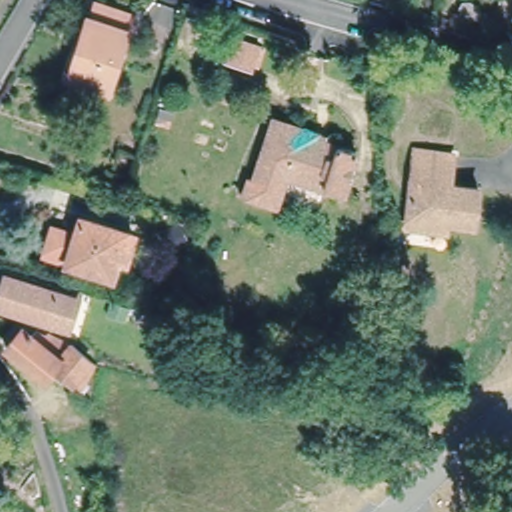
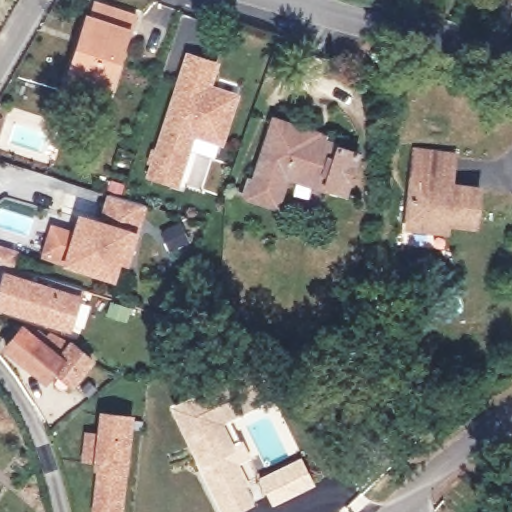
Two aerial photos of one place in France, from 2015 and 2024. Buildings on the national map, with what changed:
unchanged [(106,89),(69,77),(88,17),(91,19),(96,2),(131,14),(126,30),(125,29),(106,89)]
new [(241,93),(224,144),(197,137),(178,187),(146,176),(150,163),(146,163),(153,147),(156,148),(186,49),(221,61),(214,84),(241,93)]
unchanged [(291,174),(281,170),(271,201),(243,192),(271,114),(299,124),(291,174)]
unchanged [(319,131),(317,136),(353,149),(339,190),(291,174),(299,124),(319,131)]
unchanged [(431,225),(406,221),(416,144),(453,149),(451,168),(449,179),(477,182),(473,221),(447,218),(446,227),(431,225)]
unchanged [(49,260),(59,231),(81,238),(86,222),(141,240),(133,266),(123,263),(117,282),(49,260)]
new [(0,265),(0,249),(11,252),(6,266),(0,265)]
unchanged [(4,304),(16,268),(67,284),(65,290),(76,293),(73,300),(79,302),(71,327),(4,304)]
unchanged [(49,378),(11,347),(28,328),(39,337),(43,332),(48,336),(51,333),(75,345),(95,362),(78,383),(59,367),(49,378)]
new [(243,436),(253,457),(241,463),(251,484),(248,486),(256,503),(238,512),(221,512),(198,464),(170,407),(251,367),(268,399),(224,422),(234,442),(243,436)]
new [(100,410),(134,413),(129,471),(123,512),(93,512),(97,468),(94,467),(95,461),(82,461),(85,430),(99,430),(100,410)]
new [(303,455),(316,484),(274,505),(260,476),(303,455)]

